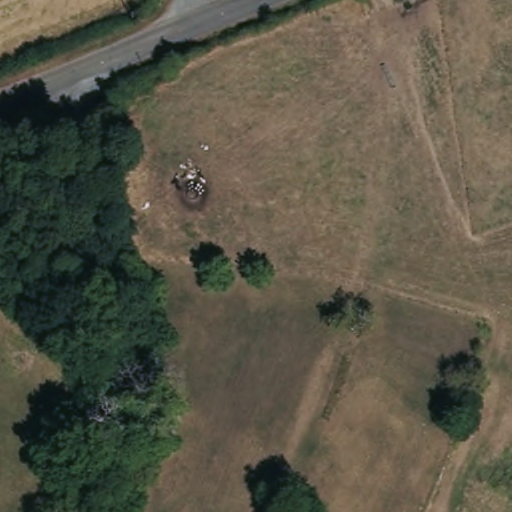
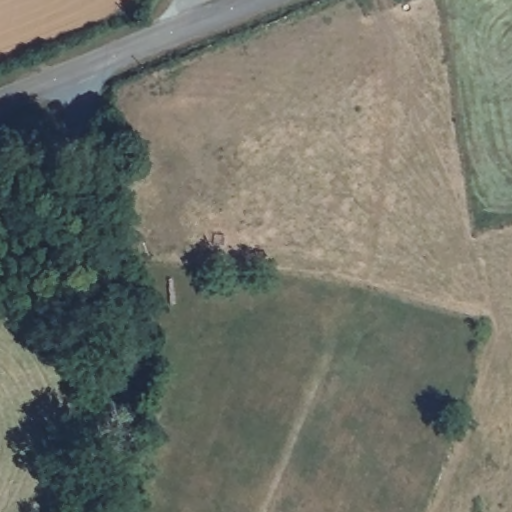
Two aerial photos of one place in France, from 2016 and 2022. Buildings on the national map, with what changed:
[]

